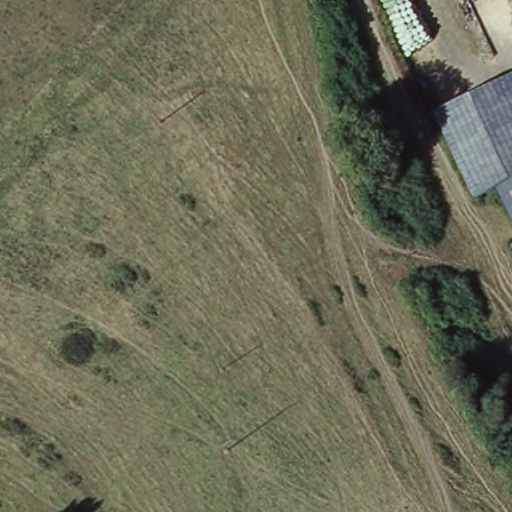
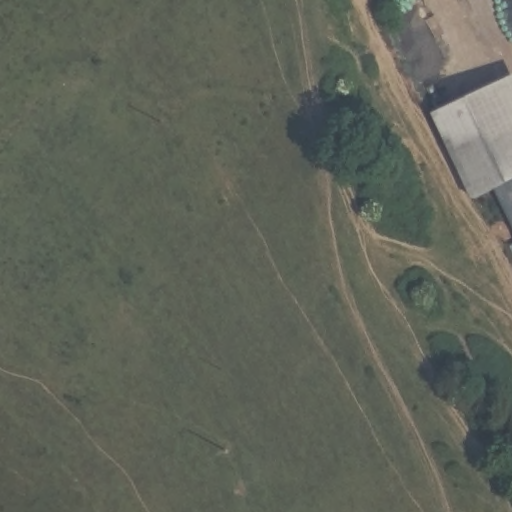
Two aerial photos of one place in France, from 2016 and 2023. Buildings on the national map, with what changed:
unchanged [(435,116),(512,76),(512,178),(497,186),(475,196),(435,116)]
unchanged [(512,178),(512,217),(497,186),(512,178)]
unchanged [(512,237),(512,247),(509,240),(512,237)]

